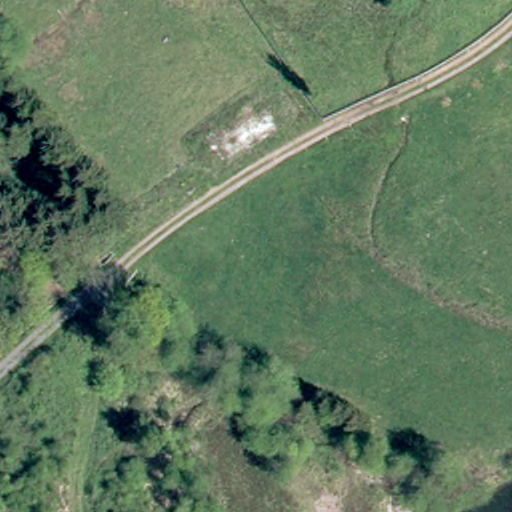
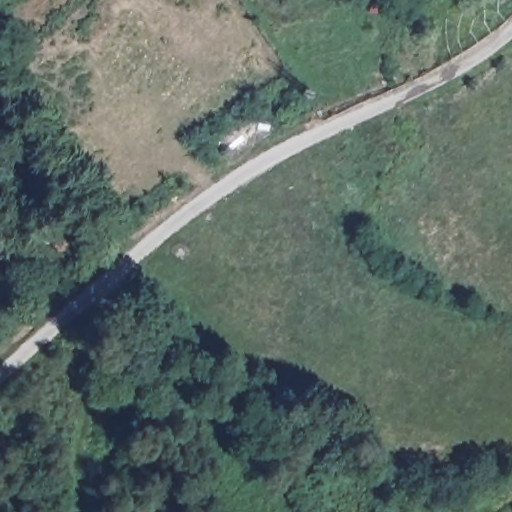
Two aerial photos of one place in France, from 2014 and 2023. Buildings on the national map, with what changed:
unchanged [(281,131),(230,160),(215,141),(268,109),(281,131)]

